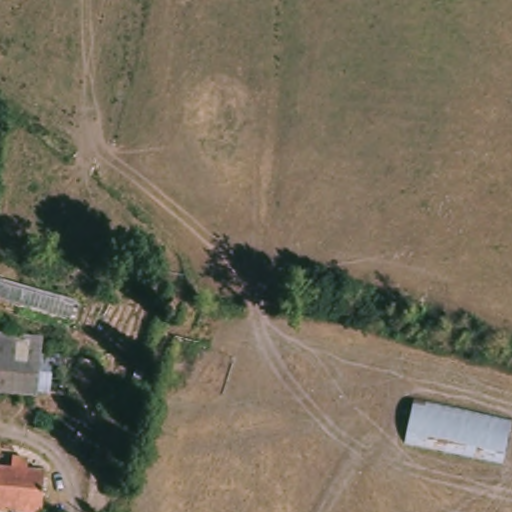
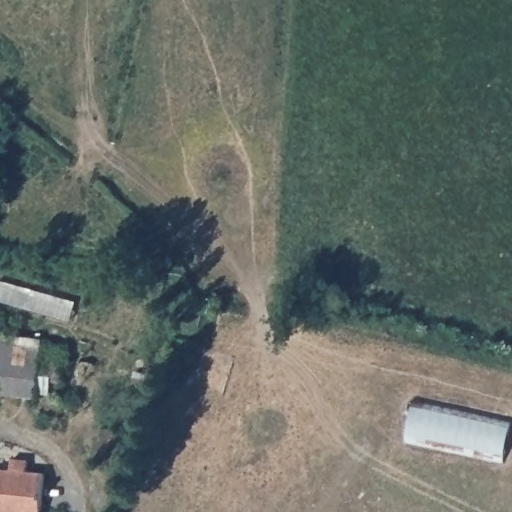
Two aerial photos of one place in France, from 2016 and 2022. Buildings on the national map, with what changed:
unchanged [(32,393),(32,399),(12,397),(12,379),(0,377),(0,336),(37,340),(36,355),(61,357),(55,396),(32,393)]
unchanged [(501,463),(400,443),(407,404),(507,424),(501,463)]
unchanged [(126,424),(122,437),(120,437),(111,470),(109,469),(92,466),(103,418),(120,422),(126,424)]
unchanged [(36,512),(0,512),(0,469),(5,470),(7,457),(22,459),(21,470),(40,472),(36,512)]

